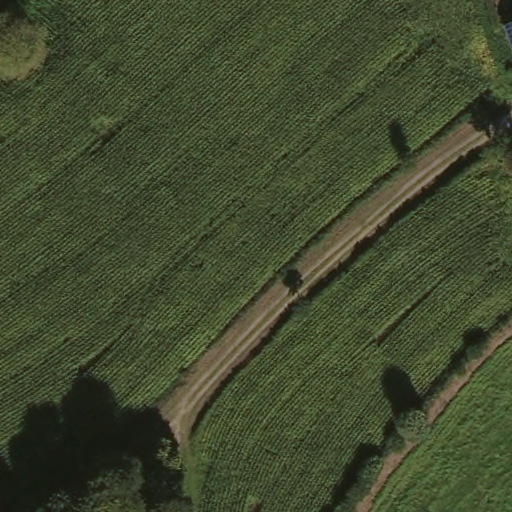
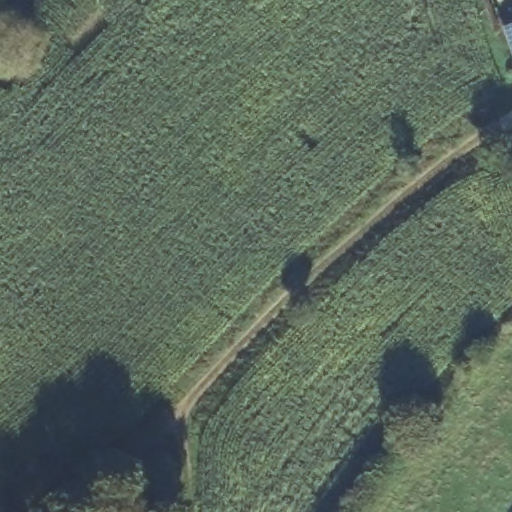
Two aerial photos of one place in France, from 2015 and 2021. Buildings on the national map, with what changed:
unchanged [(505,26),(512,23),(512,48),(505,26)]

